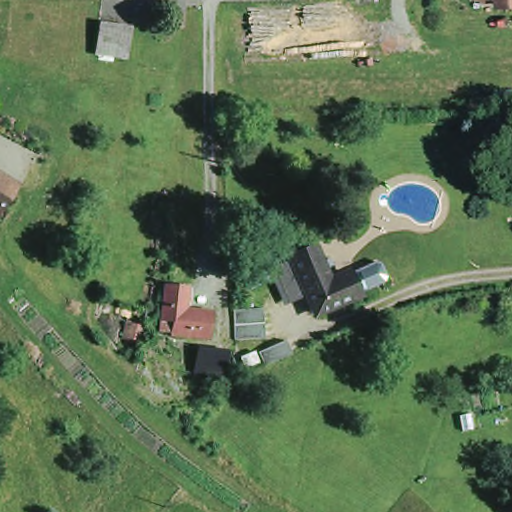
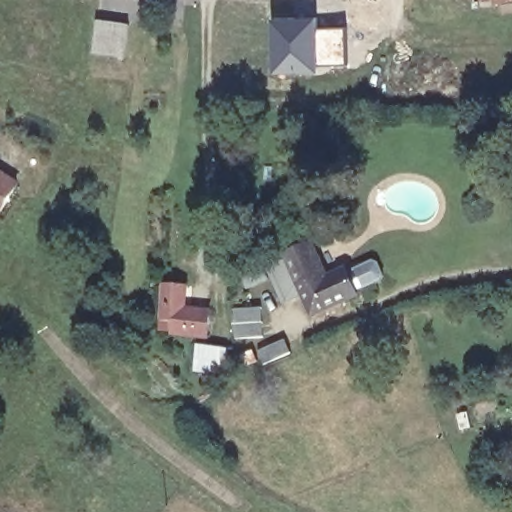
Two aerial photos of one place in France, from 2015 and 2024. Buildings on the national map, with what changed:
new [(318,14),(319,26),(320,65),(320,70),(272,72),(270,16),(318,14)]
unchanged [(93,54),(97,21),(128,26),(123,58),(93,54)]
new [(347,25),(347,64),(320,65),(319,26),(347,25)]
unchanged [(505,150),(476,151),(475,138),(505,137),(505,150)]
unchanged [(15,178),(0,204),(0,169),(15,178)]
unchanged [(290,251),(313,240),(330,275),(349,266),(359,288),(317,307),(307,287),(292,293),(278,263),(293,257),(290,251)]
unchanged [(160,318),(162,285),(185,286),(183,307),(190,308),(208,310),(207,334),(171,332),(160,331),(160,318)]
new [(260,306),(261,336),(232,337),(230,307),(260,306)]
unchanged [(219,364),(195,362),(197,349),(220,352),(219,364)]

